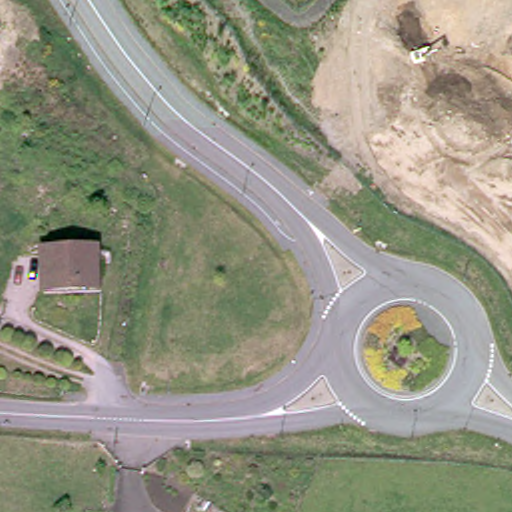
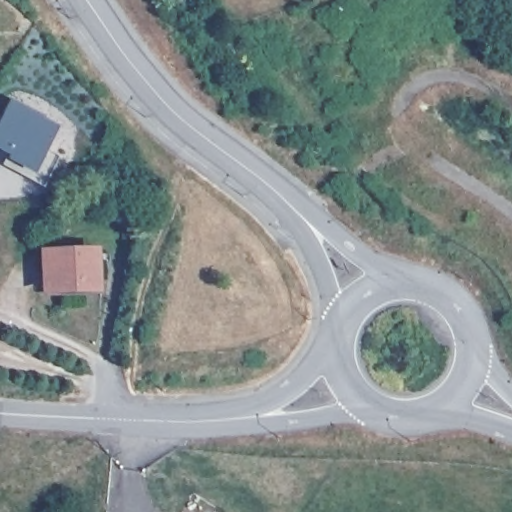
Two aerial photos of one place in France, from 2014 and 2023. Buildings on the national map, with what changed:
new [(6,105),(54,132),(34,166),(0,148),(0,115),(6,105)]
unchanged [(88,252),(89,283),(45,285),(44,253),(88,252)]

